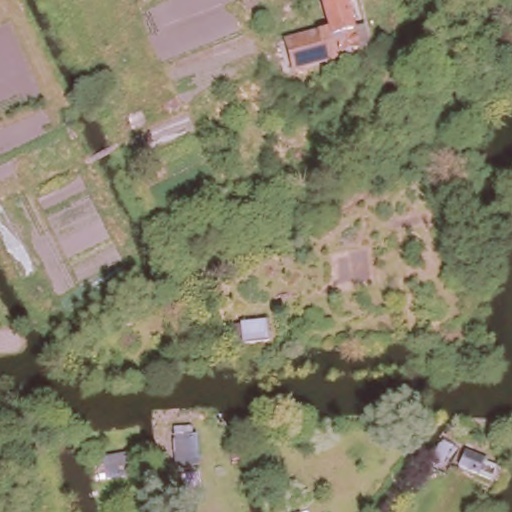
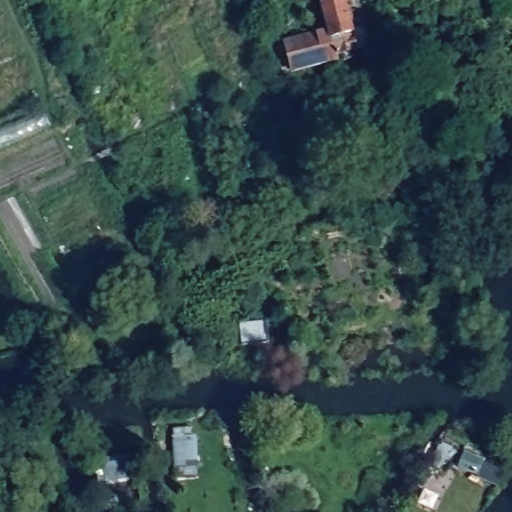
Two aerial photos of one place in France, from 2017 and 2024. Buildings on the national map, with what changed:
unchanged [(355,37),(366,34),(370,51),(367,54),(354,57),(352,63),(342,65),(337,61),(332,62),(323,29),(316,0),(346,0),(355,37)]
unchanged [(323,29),(332,62),(293,73),(287,40),(323,29)]
unchanged [(237,342),(237,322),(272,318),(273,338),(237,342)]
unchanged [(166,437),(197,439),(197,469),(167,468),(166,437)]
unchanged [(98,462),(131,457),(133,479),(100,482),(98,462)]
unchanged [(487,460),(484,476),(465,473),(469,457),(487,460)]

